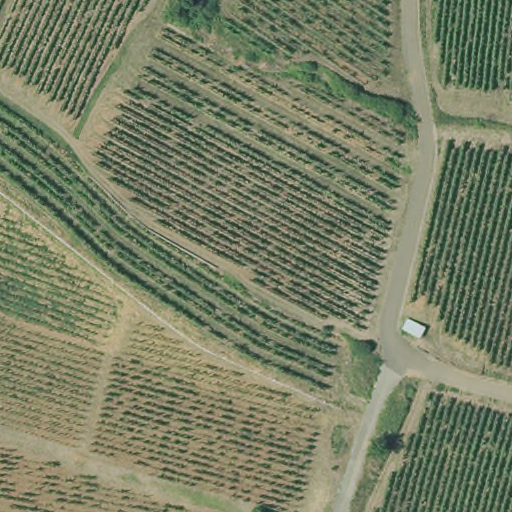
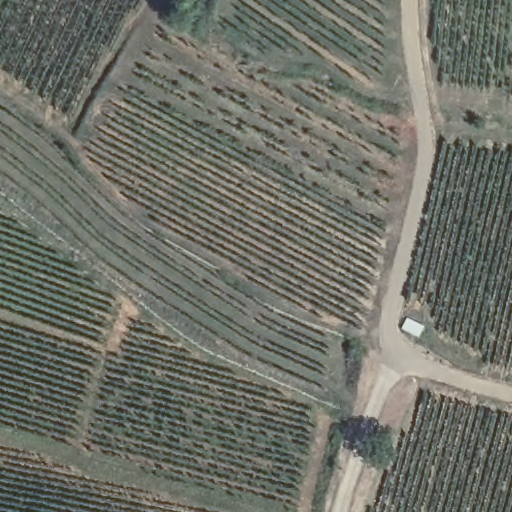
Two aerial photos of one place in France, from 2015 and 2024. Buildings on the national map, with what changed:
unchanged [(418,335),(403,327),(409,318),(423,325),(418,335)]

